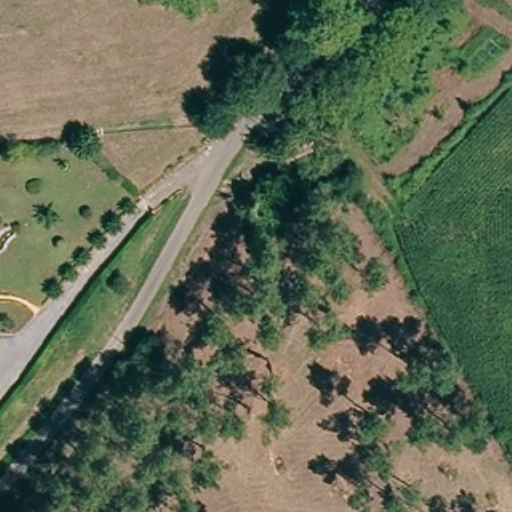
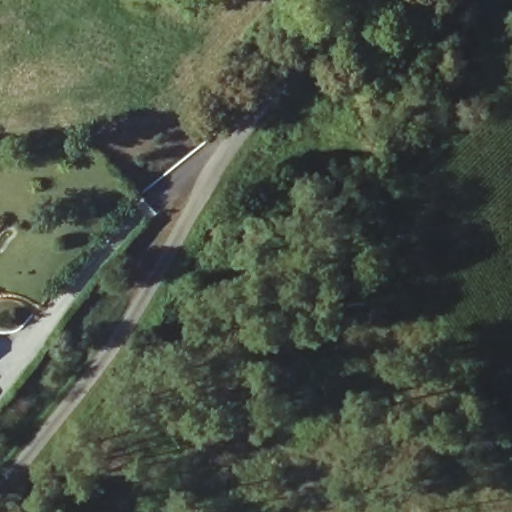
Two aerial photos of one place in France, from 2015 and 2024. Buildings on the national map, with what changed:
[]

